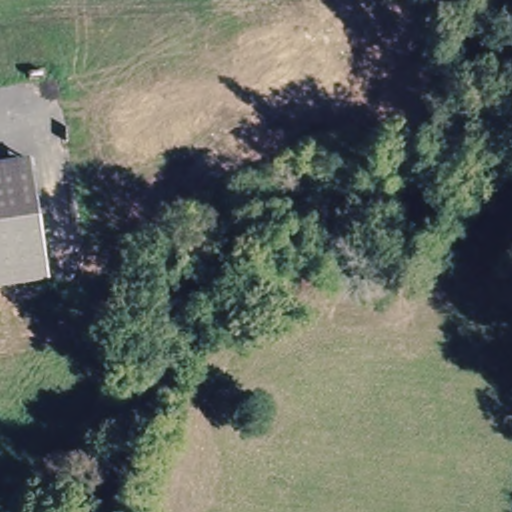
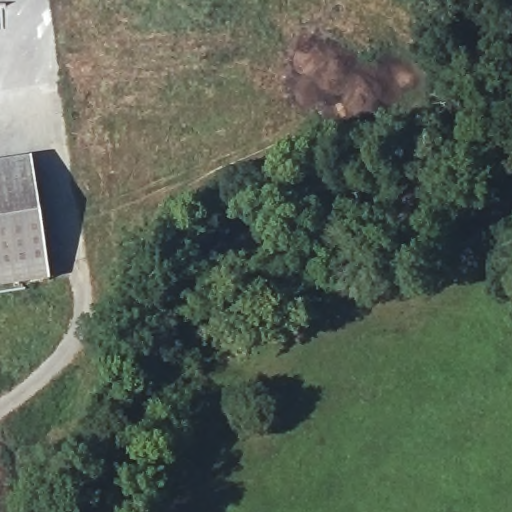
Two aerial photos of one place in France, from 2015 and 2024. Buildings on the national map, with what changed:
unchanged [(55,280),(0,288),(0,164),(35,158),(55,280)]

